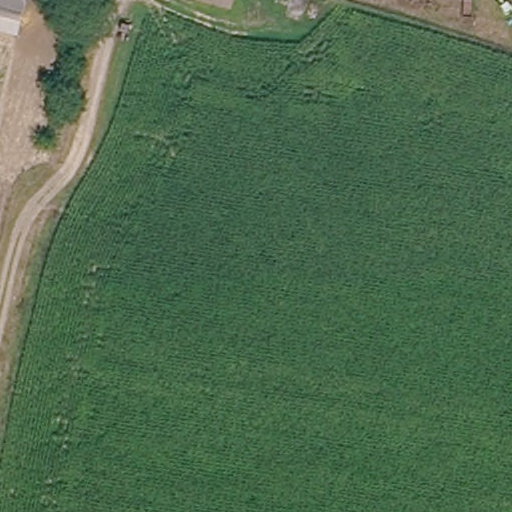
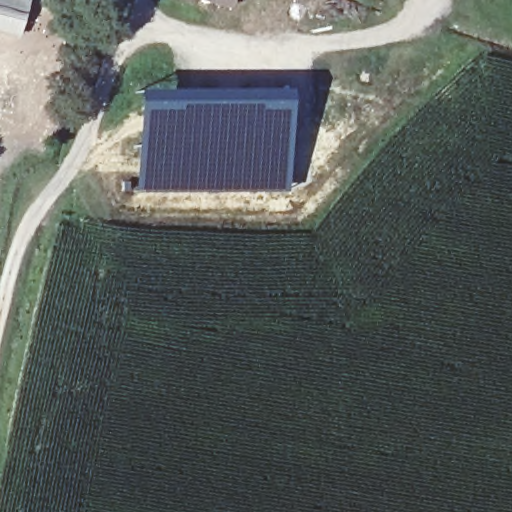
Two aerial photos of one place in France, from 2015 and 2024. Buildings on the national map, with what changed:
unchanged [(0,0),(28,0),(32,1),(22,39),(0,33),(0,0)]
unchanged [(235,8),(204,0),(237,0),(235,8)]
new [(172,90),(229,92),(230,100),(287,99),(286,192),(136,192),(134,91),(172,90)]

